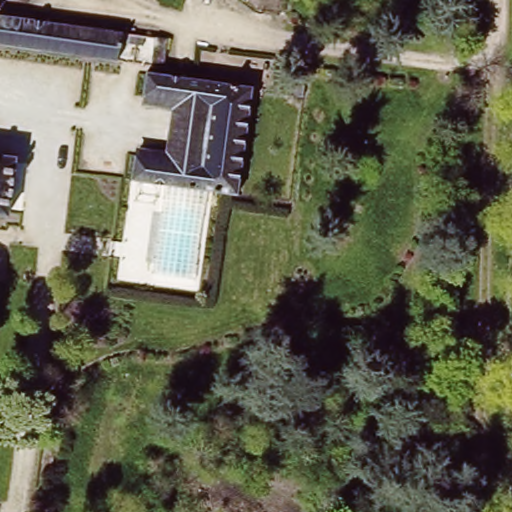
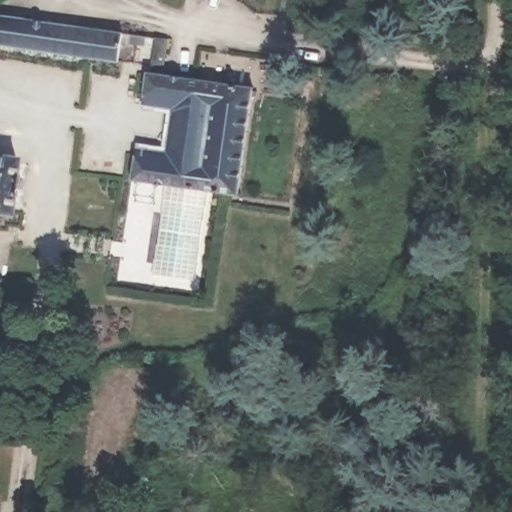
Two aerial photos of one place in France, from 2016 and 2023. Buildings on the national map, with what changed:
unchanged [(108,66),(0,45),(0,21),(112,41),(108,66)]
unchanged [(150,47),(146,67),(131,65),(135,45),(150,47)]
unchanged [(188,98),(142,88),(144,70),(188,79),(229,88),(233,88),(228,112),(215,187),(178,181),(174,181),(128,174),(133,151),(178,158),(188,98)]
unchanged [(133,151),(135,135),(161,139),(166,109),(139,104),(142,88),(188,98),(178,158),(133,151)]
unchanged [(228,112),(233,88),(254,92),(241,190),(215,187),(228,112)]
unchanged [(6,218),(0,217),(0,159),(16,160),(8,208),(6,218)]

